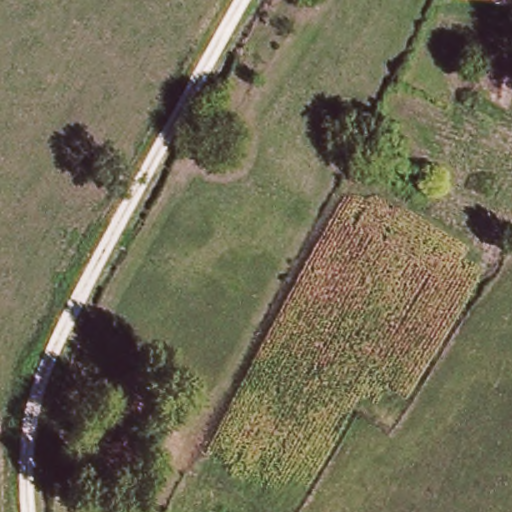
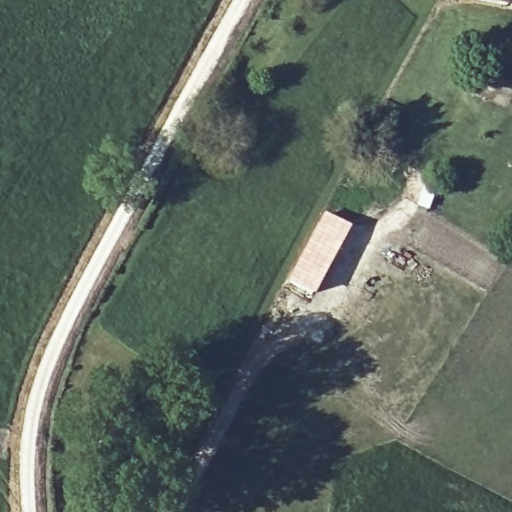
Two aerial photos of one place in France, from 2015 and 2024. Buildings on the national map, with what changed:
unchanged [(506,14),(445,2),(446,0),(507,0),(507,4),(506,14)]
new [(323,214),(350,227),(315,295),(288,281),(323,214)]

